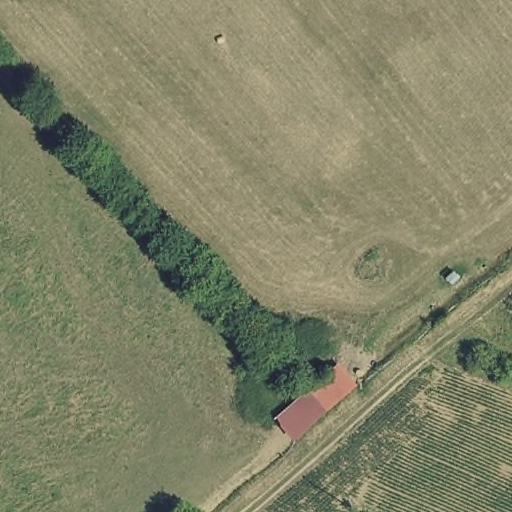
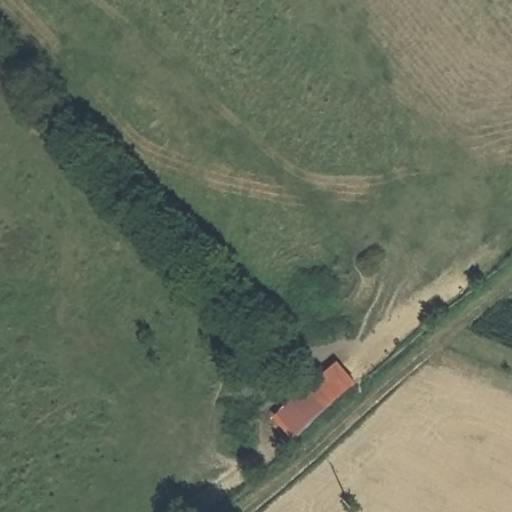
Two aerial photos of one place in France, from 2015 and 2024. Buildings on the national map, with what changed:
unchanged [(339,363),(358,384),(292,445),(275,421),(339,363)]

